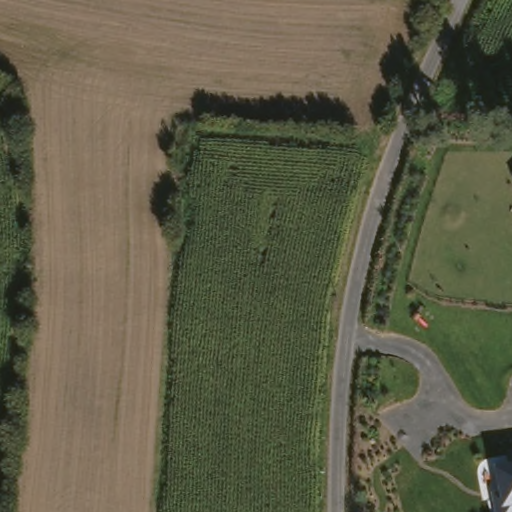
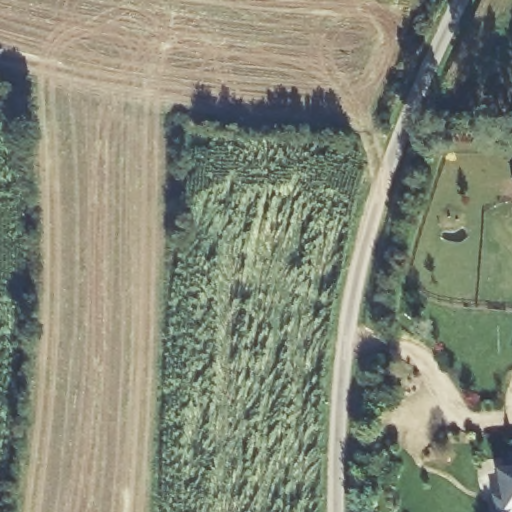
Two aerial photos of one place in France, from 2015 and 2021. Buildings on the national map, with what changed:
unchanged [(512,512),(493,512),(491,502),(499,501),(495,470),(508,468),(506,453),(512,452),(512,512)]

